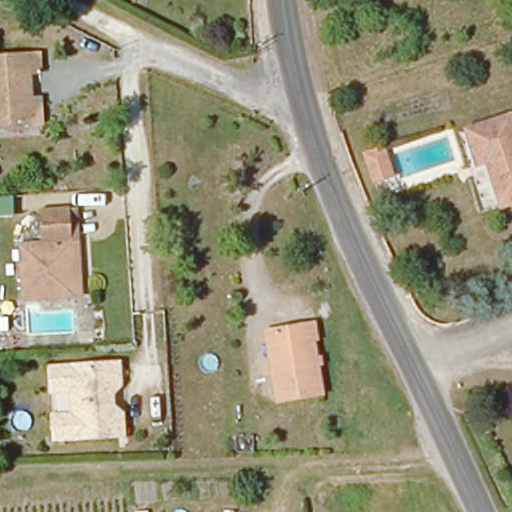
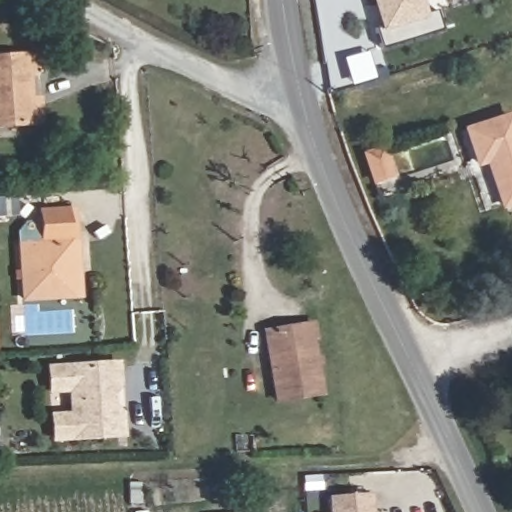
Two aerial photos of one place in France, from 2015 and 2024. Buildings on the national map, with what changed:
new [(432,9),(438,30),(376,47),(369,27),(379,25),(372,0),(414,0),(418,13),(432,9)]
unchanged [(0,124),(0,54),(36,52),(40,122),(0,124)]
unchanged [(512,129),(512,201),(503,204),(485,158),(479,160),(469,165),(456,131),(469,127),(508,115),(512,129)]
unchanged [(386,148),(396,175),(374,183),(366,154),(386,148)]
unchanged [(27,247),(44,247),(43,211),(70,210),(77,209),(83,298),(76,299),(26,302),(27,247)]
unchanged [(273,396),(269,329),(310,328),(314,394),(273,396)]
unchanged [(106,390),(105,400),(113,412),(114,437),(53,440),(52,415),(75,414),(75,391),(51,392),(50,366),(111,363),(117,363),(118,381),(112,385),(106,390)]
new [(370,512),(328,512),(327,496),(368,492),(370,512)]

